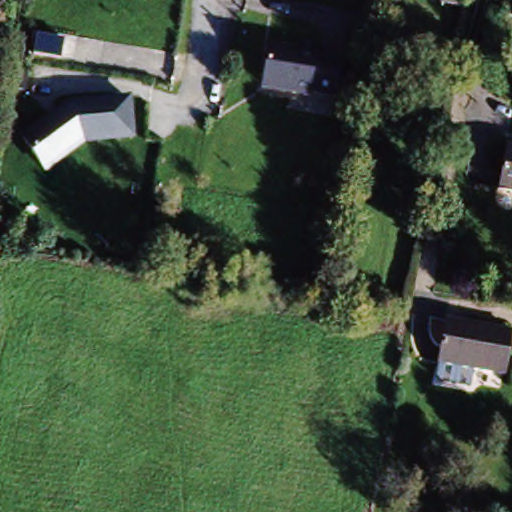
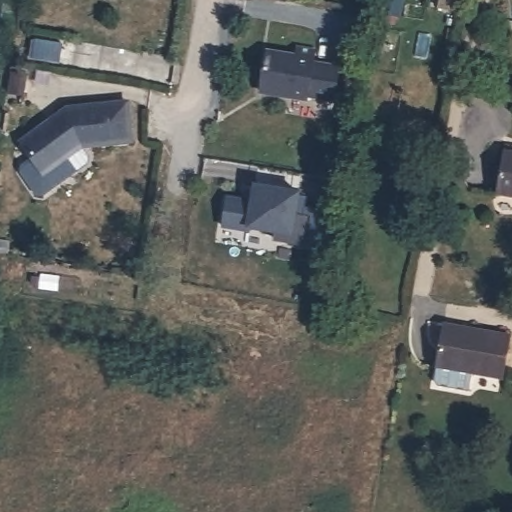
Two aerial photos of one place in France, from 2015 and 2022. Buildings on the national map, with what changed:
unchanged [(465,1),(463,15),(438,10),(440,0),(466,0),(465,1)]
unchanged [(272,50),(301,55),(302,46),(321,49),(319,62),(345,66),(340,98),(314,94),(313,98),(266,90),(272,50)]
unchanged [(28,141),(75,107),(132,101),(136,139),(88,144),(50,172),(28,141)]
unchanged [(512,195),(496,191),(504,149),(512,151),(512,195)]
new [(275,241),(276,232),(247,229),(222,227),(228,196),(251,197),(254,184),(303,193),(299,212),(311,216),(305,246),(275,241)]
unchanged [(511,336),(504,379),(470,372),(467,390),(440,385),(436,380),(439,366),(447,325),(511,336)]

